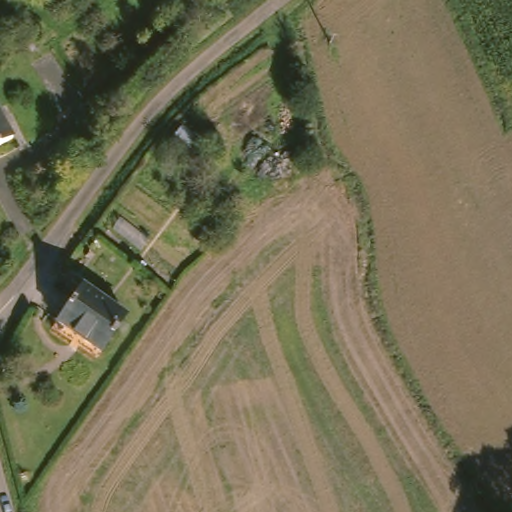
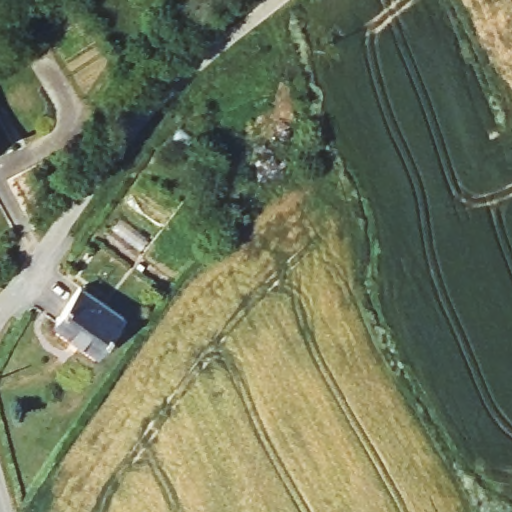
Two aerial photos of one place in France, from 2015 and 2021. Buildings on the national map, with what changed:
unchanged [(14,142),(0,149),(0,113),(14,142)]
unchanged [(94,355),(77,342),(79,339),(52,317),(81,284),(122,318),(94,355)]

